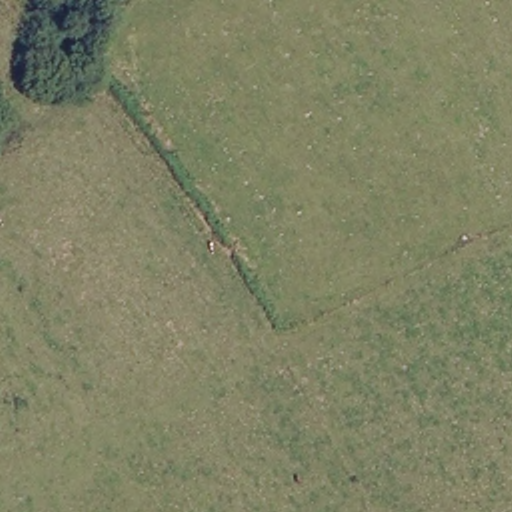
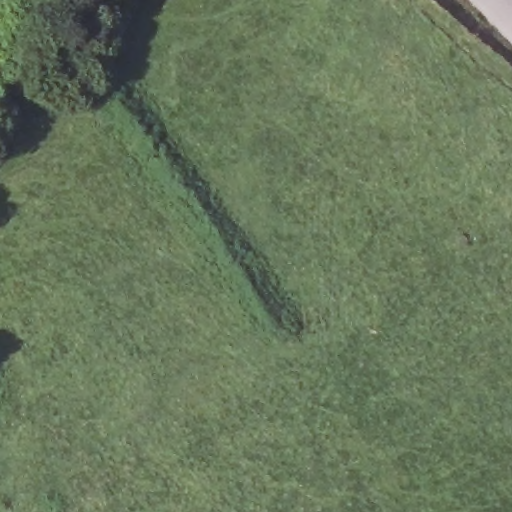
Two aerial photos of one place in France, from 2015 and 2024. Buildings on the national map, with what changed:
new [(512,0),(512,46),(468,0),(512,0)]

